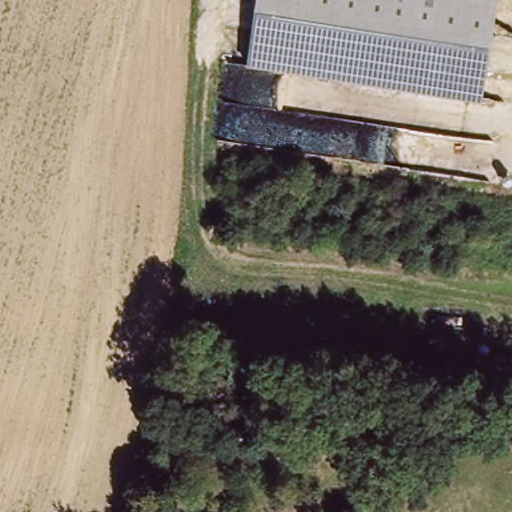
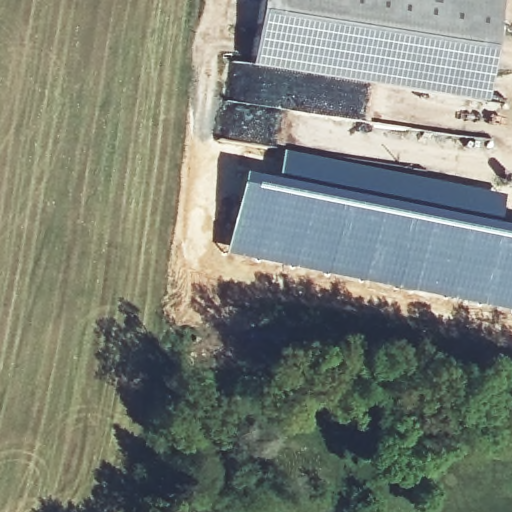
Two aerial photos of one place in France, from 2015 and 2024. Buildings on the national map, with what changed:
unchanged [(259,0),(497,0),(487,99),(252,73),(259,0)]
new [(275,178),(282,150),(370,167),(502,196),(497,223),(512,227),(512,310),(225,253),(241,172),(275,178)]
unchanged [(512,382),(477,376),(478,352),(512,358),(512,382)]

